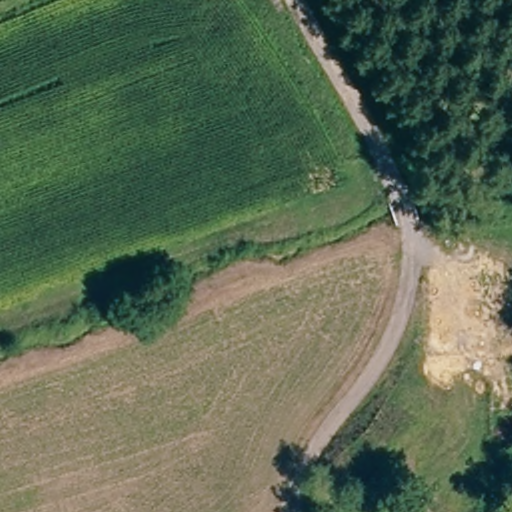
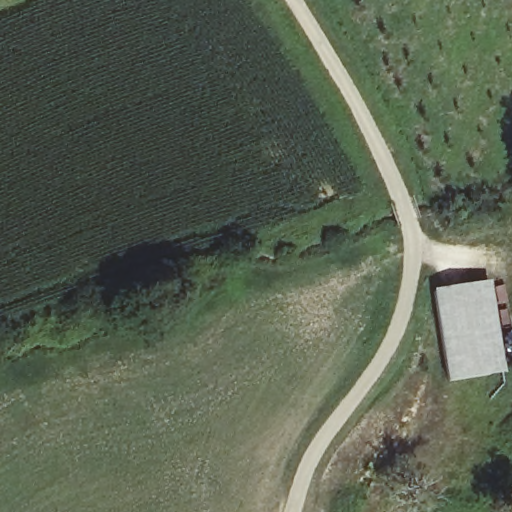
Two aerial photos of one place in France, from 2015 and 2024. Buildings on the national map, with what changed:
demolished [(480,309),(476,355),(451,355),(450,323),(429,323),(431,285),(441,286),(444,241),(469,242),(468,283),(488,285),(498,304),(480,309)]
new [(489,279),(503,374),(447,382),(434,288),(489,279)]

